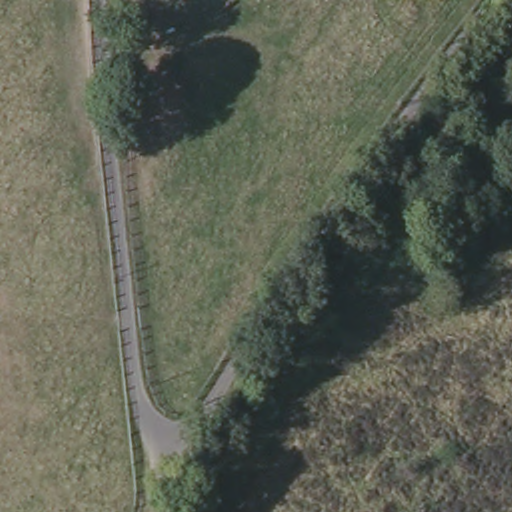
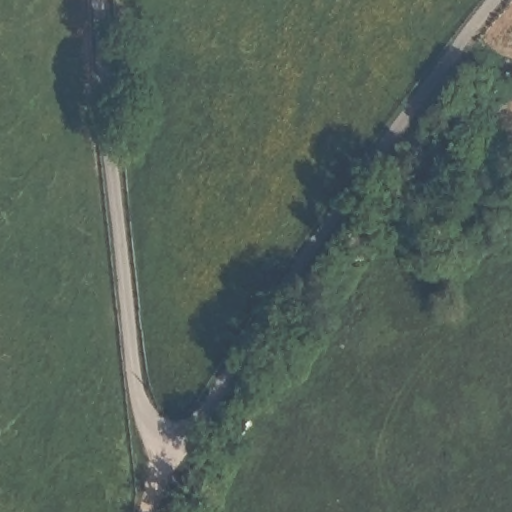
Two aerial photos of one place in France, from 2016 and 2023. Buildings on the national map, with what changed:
unchanged [(372,258),(347,242),(402,156),(428,175),(372,258)]

